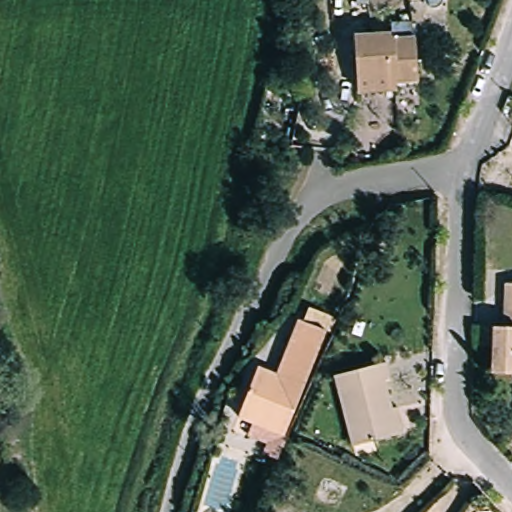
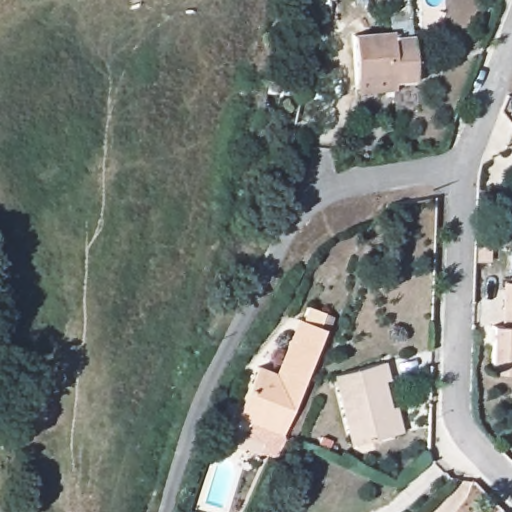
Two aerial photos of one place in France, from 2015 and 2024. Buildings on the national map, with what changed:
unchanged [(355,93),(355,75),(352,33),(392,30),(392,35),(412,35),(415,81),(397,81),(398,91),(355,93)]
unchanged [(261,83),(296,90),(284,149),(250,141),(261,83)]
unchanged [(512,281),(512,357),(490,356),(493,308),(510,308),(512,281)]
unchanged [(258,364),(280,371),(300,318),(327,329),(286,430),(240,412),(258,364)]
unchanged [(385,363),(388,379),(383,381),(397,434),(352,446),(332,377),(385,363)]

